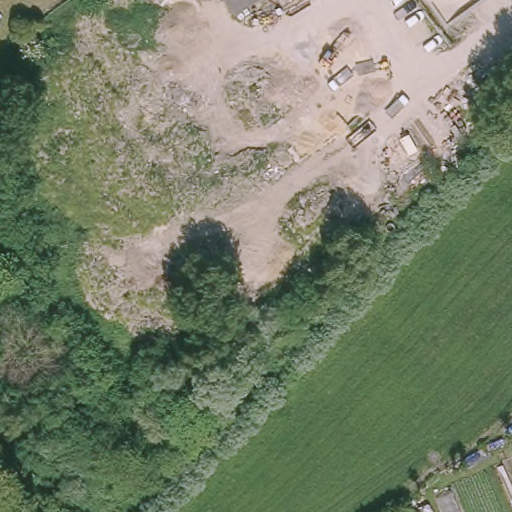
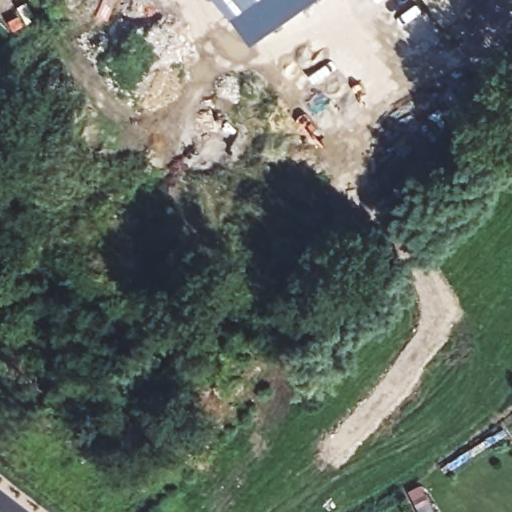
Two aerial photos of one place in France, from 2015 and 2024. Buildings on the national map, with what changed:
unchanged [(230,11),(222,0),(247,0),(230,11)]
new [(254,43),(230,11),(247,0),(317,0),(254,43)]
unchanged [(0,24),(0,21),(2,23),(0,24)]

